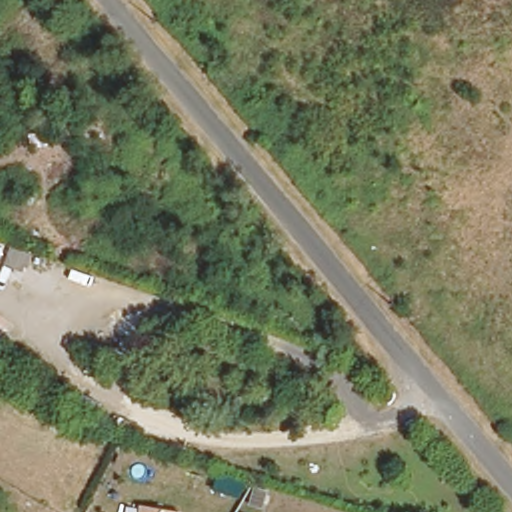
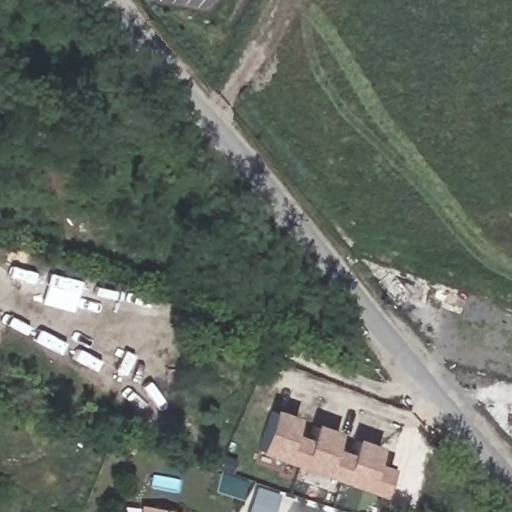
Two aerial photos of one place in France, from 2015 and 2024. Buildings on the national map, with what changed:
new [(391,467),(380,496),(256,452),(272,408),(297,416),(291,432),(307,438),(313,422),(338,431),(333,445),(349,451),(354,436),(379,445),(374,461),(391,467)]
new [(246,480),(240,499),(213,491),(218,472),(246,480)]
unchanged [(139,512),(139,505),(182,510),(182,512),(139,512)]

